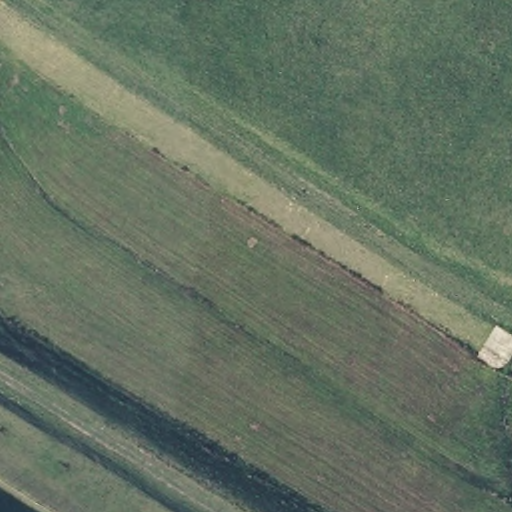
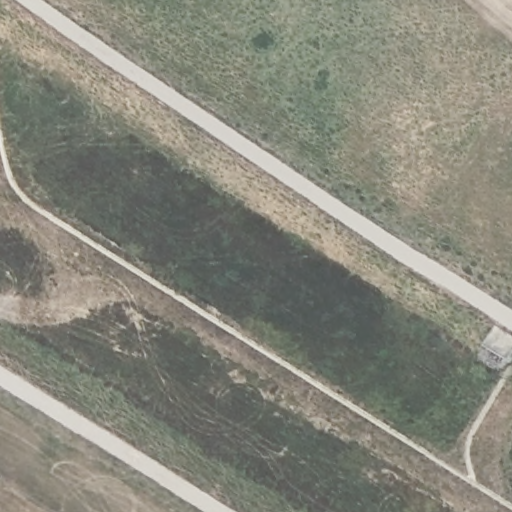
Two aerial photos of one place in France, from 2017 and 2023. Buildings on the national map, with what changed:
unchanged [(512,336),(512,354),(508,358),(488,344),(499,328),(512,336)]

